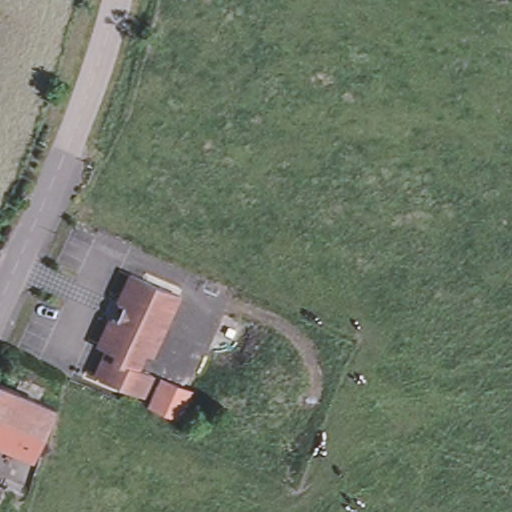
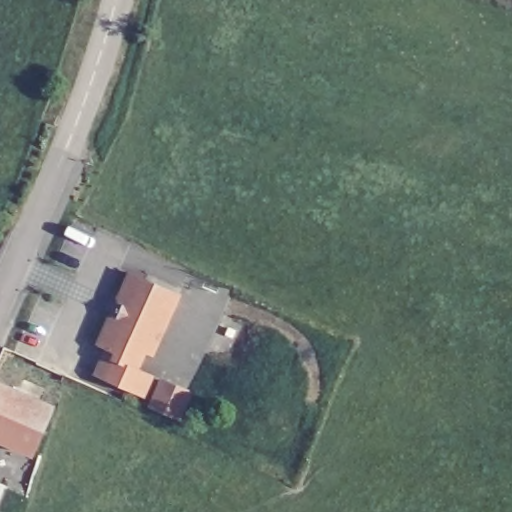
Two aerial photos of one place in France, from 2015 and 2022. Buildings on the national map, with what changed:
unchanged [(104,347),(115,323),(123,322),(130,308),(126,300),(137,275),(187,297),(159,359),(151,356),(142,373),(160,381),(151,401),(101,377),(112,352),(104,347)]
unchanged [(28,456),(0,444),(0,386),(50,407),(28,456)]

